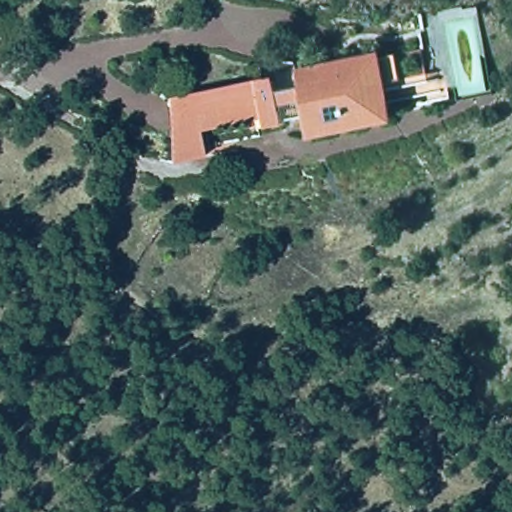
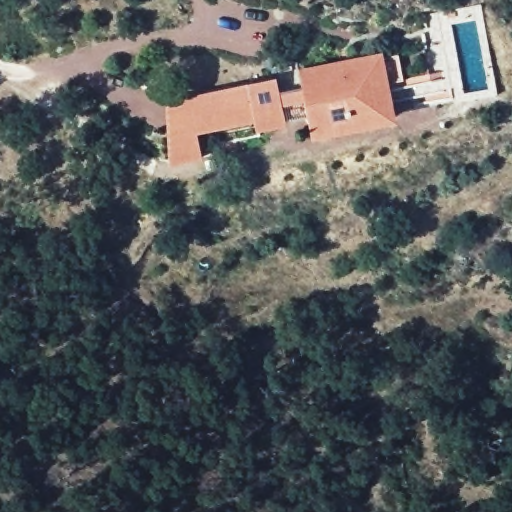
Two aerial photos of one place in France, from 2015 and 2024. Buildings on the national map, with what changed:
unchanged [(387,47),(401,49),(406,75),(447,68),(449,91),(395,100),(399,121),(314,137),(309,99),(286,104),(286,112),(287,125),(258,131),(258,119),(203,131),(203,158),(170,163),(170,136),(167,98),(281,74),(283,89),(306,85),(303,63),(387,47)]

